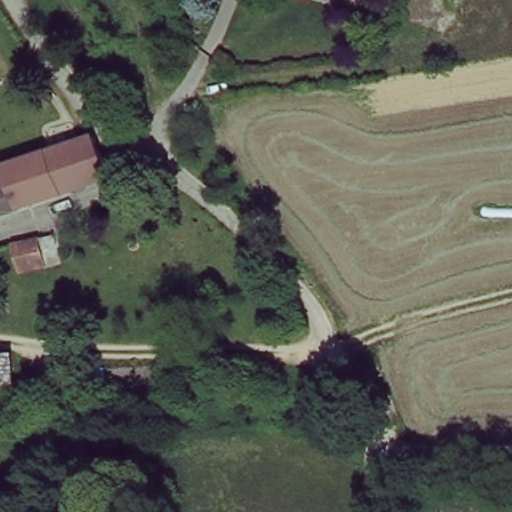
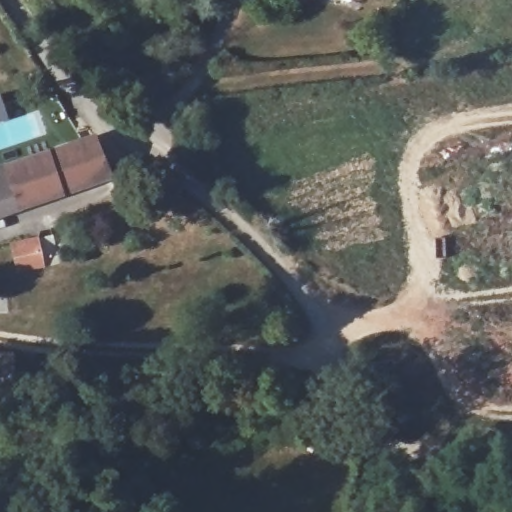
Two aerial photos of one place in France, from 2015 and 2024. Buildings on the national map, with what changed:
unchanged [(104,182),(0,217),(0,170),(37,158),(90,140),(104,182)]
unchanged [(10,245),(35,237),(38,244),(52,241),(57,262),(42,267),(22,274),(10,245)]
unchanged [(16,354),(18,424),(0,424),(0,355),(16,354)]

